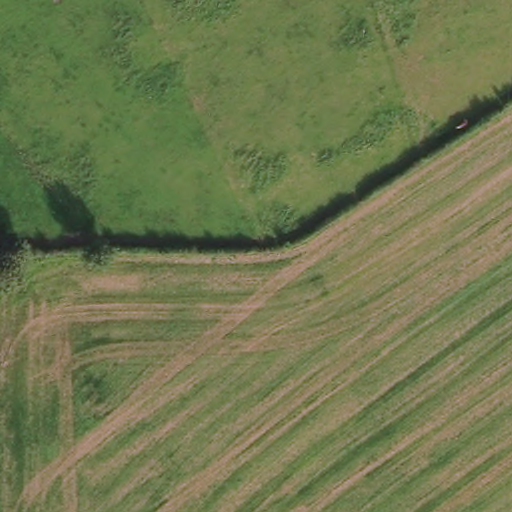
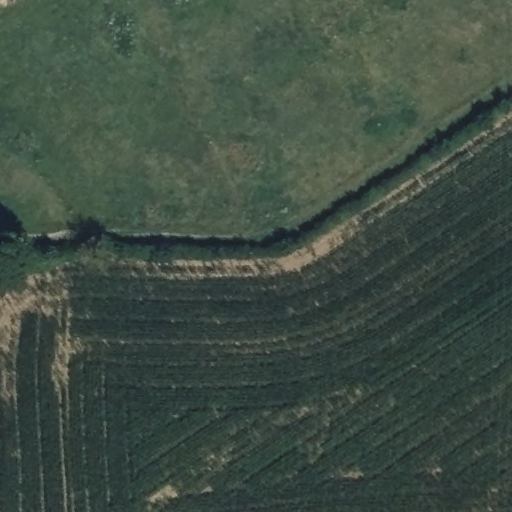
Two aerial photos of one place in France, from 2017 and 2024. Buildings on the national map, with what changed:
[]

